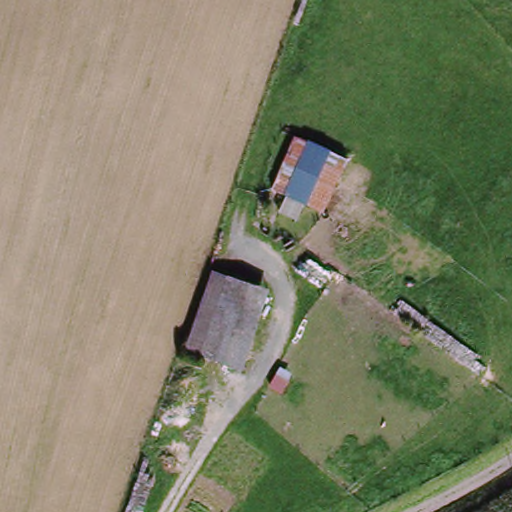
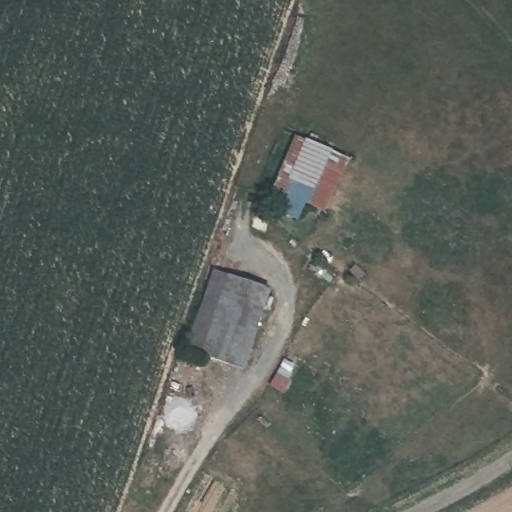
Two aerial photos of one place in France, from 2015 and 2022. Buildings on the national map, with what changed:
unchanged [(324,211),(271,189),(296,133),(349,159),(324,211)]
unchanged [(183,355),(215,277),(273,298),(246,374),(183,355)]

